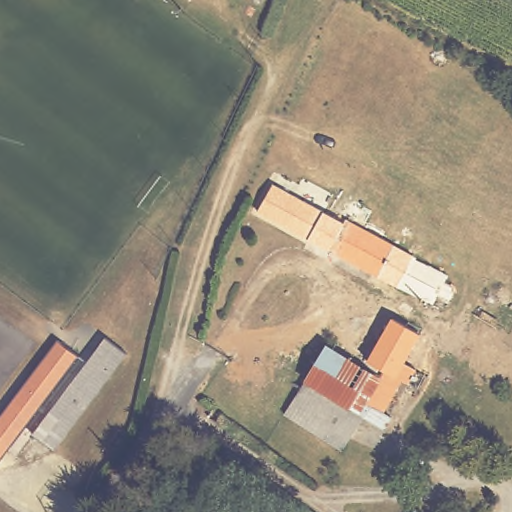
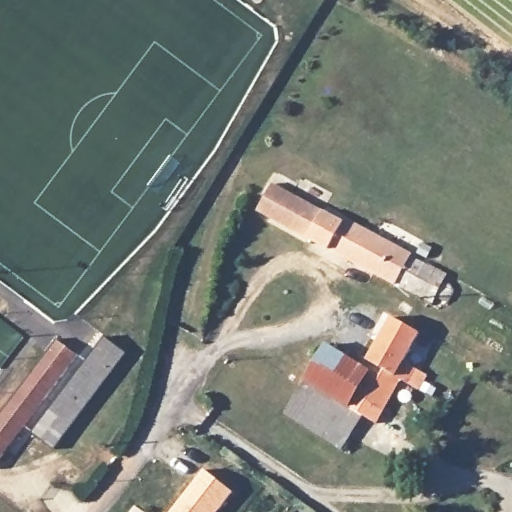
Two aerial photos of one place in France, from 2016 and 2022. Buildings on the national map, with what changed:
unchanged [(318,200),(302,230),(250,203),(266,175),(318,200)]
unchanged [(352,206),(379,220),(395,229),(392,236),(462,272),(447,305),(302,230),(318,200),(337,209),(347,212),(352,206)]
unchanged [(382,315),(409,326),(398,352),(415,360),(411,370),(403,367),(396,380),(389,377),(374,416),(366,412),(356,407),(374,368),(361,360),(382,315)]
unchanged [(130,348),(54,446),(33,429),(109,332),(130,348)]
unchanged [(60,343),(79,357),(0,461),(0,418),(58,342),(60,343)]
unchanged [(305,383),(326,342),(361,360),(374,368),(356,407),(305,383)]
unchanged [(366,412),(350,450),(287,417),(305,383),(356,407),(366,412)]
new [(236,491),(219,512),(171,512),(205,468),(236,491)]

